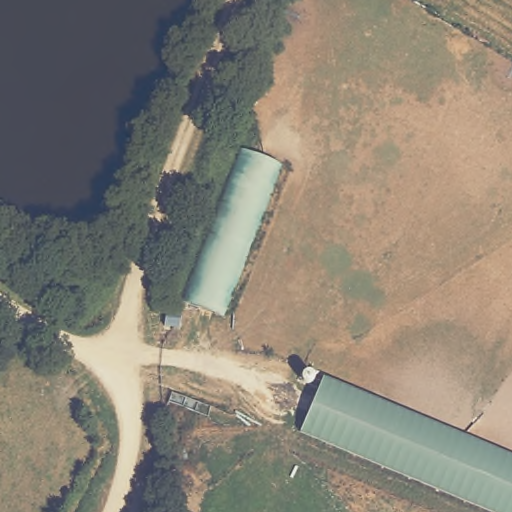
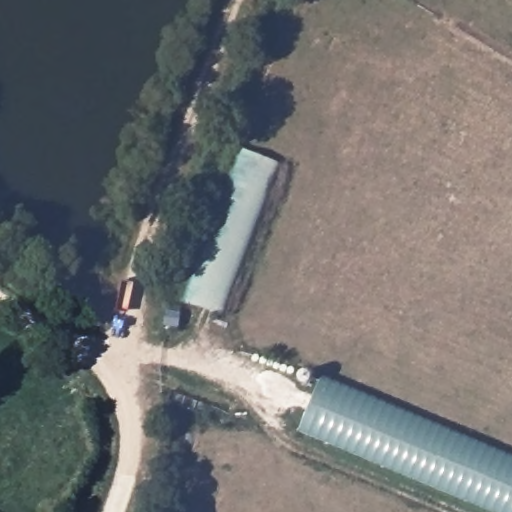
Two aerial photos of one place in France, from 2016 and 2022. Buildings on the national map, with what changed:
unchanged [(225,318),(180,301),(237,141),(283,162),(225,318)]
unchanged [(512,454),(512,512),(482,512),(299,435),(326,375),(512,454)]

